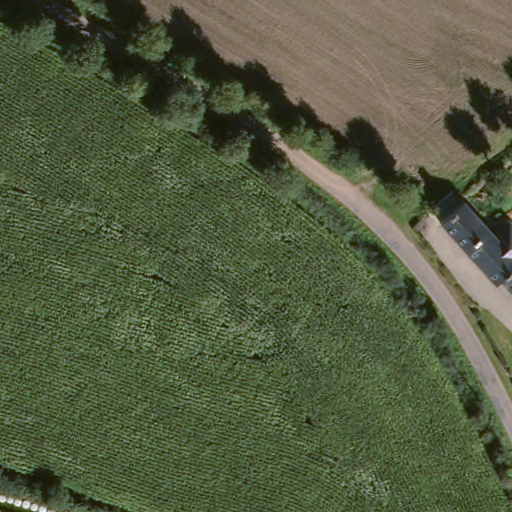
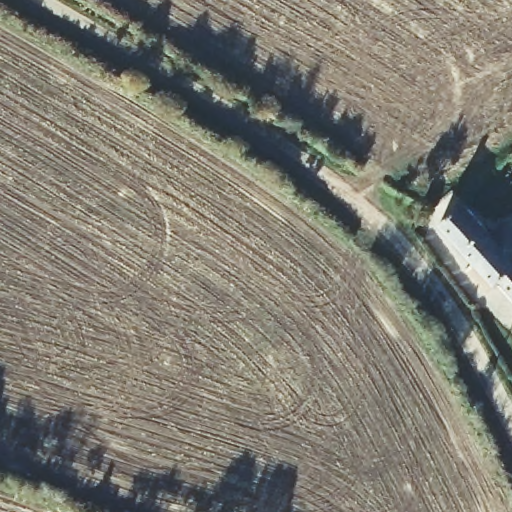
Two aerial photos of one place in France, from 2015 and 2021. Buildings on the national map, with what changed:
unchanged [(506,286),(480,264),(440,231),(445,226),(460,208),(497,241),(510,226),(512,228),(512,287),(508,283),(506,286)]

